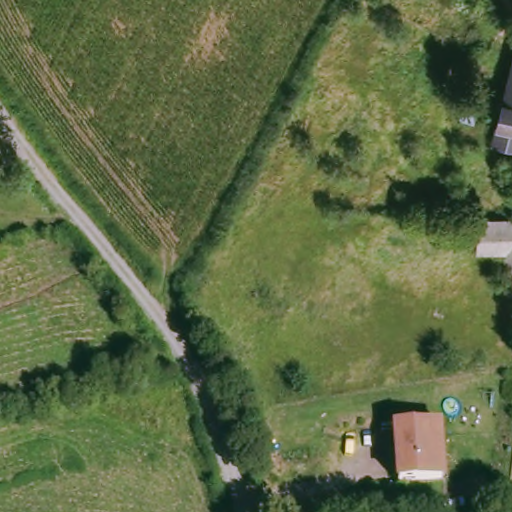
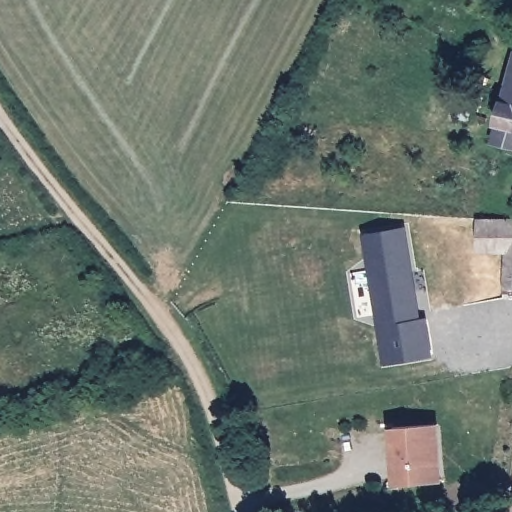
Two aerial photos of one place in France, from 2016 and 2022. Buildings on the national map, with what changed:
unchanged [(512,83),(512,171),(489,163),(512,83)]
unchanged [(474,146),(455,140),(468,89),(485,95),(474,146)]
unchanged [(512,294),(502,292),(507,257),(477,250),(480,216),(512,223),(512,294)]
new [(402,236),(413,301),(408,302),(410,309),(415,308),(418,327),(425,326),(431,362),(385,371),(362,243),(402,236)]
unchanged [(404,490),(390,436),(427,426),(432,425),(447,478),(442,477),(442,480),(404,490)]

